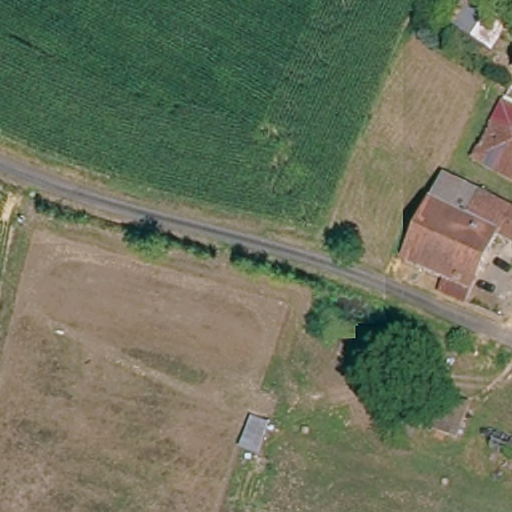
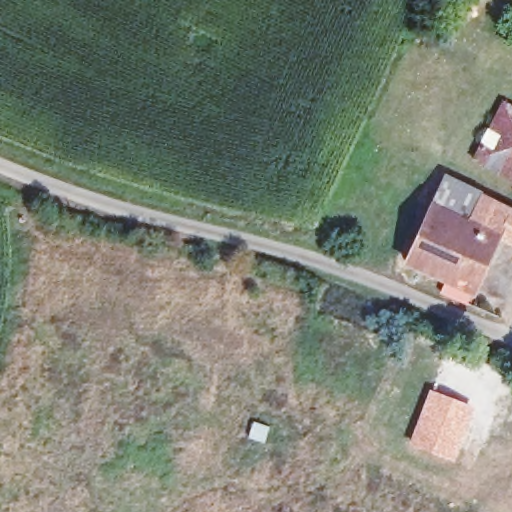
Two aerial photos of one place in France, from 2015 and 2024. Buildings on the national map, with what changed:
unchanged [(494,122),(482,117),(486,107),(499,112),(512,117),(512,139),(490,131),(494,122)]
unchanged [(512,185),(472,169),(490,131),(512,139),(512,185)]
demolished [(413,192),(395,185),(405,162),(407,157),(425,163),(413,192)]
unchanged [(512,207),(512,221),(476,207),(465,231),(429,216),(444,180),(512,207)]
unchanged [(476,207),(512,221),(512,251),(499,247),(473,302),(405,272),(429,216),(465,231),(476,207)]
new [(428,390),(475,408),(454,462),(407,446),(428,390)]

